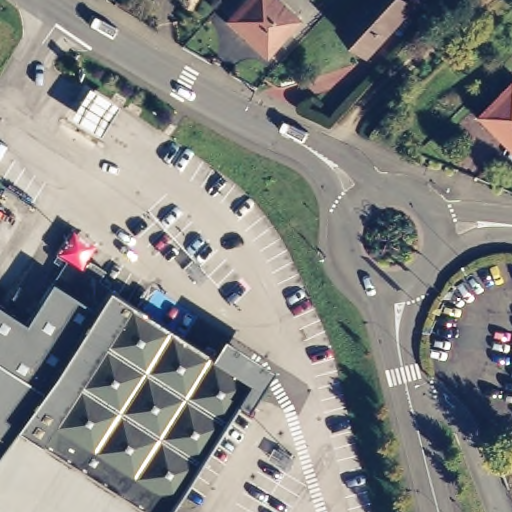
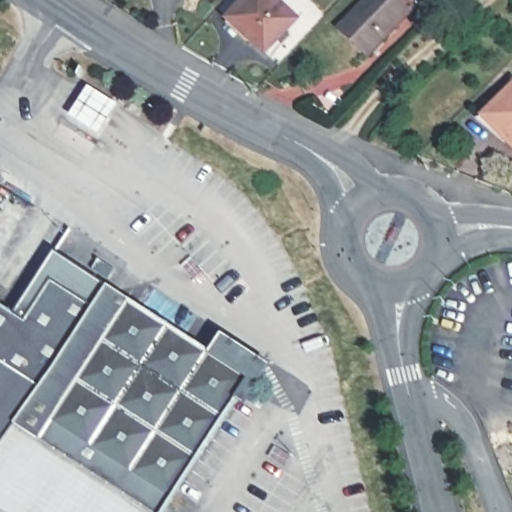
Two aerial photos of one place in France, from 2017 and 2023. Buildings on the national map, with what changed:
unchanged [(277,0),(290,12),(260,45),(225,12),(235,0),(277,0)]
unchanged [(410,0),(385,26),(388,29),(369,49),(342,24),(365,0),(410,0)]
unchanged [(512,83),(512,141),(483,112),(512,83)]
unchanged [(90,84),(118,102),(97,135),(67,116),(90,84)]
unchanged [(52,246),(110,284),(211,351),(221,332),(273,367),(247,407),(234,400),(163,512),(3,512),(0,510),(0,304),(14,312),(52,246)]

